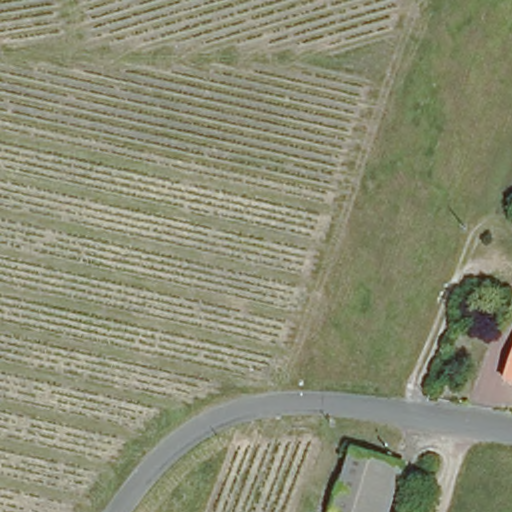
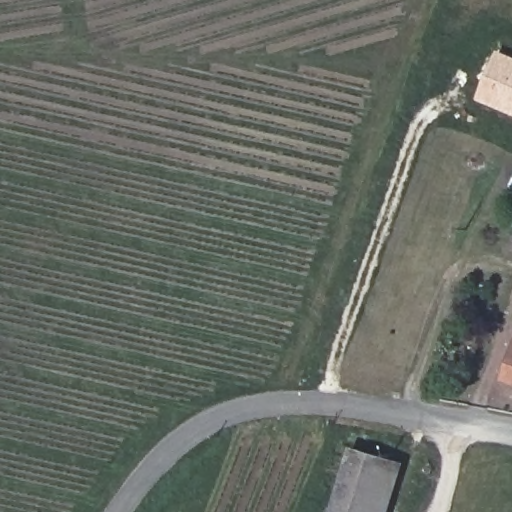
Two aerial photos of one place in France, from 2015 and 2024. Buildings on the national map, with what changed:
new [(512,114),(478,100),(499,51),(512,57),(512,114)]
unchanged [(512,358),(512,382),(505,380),(512,358)]
unchanged [(386,512),(341,512),(358,453),(401,466),(386,512)]

